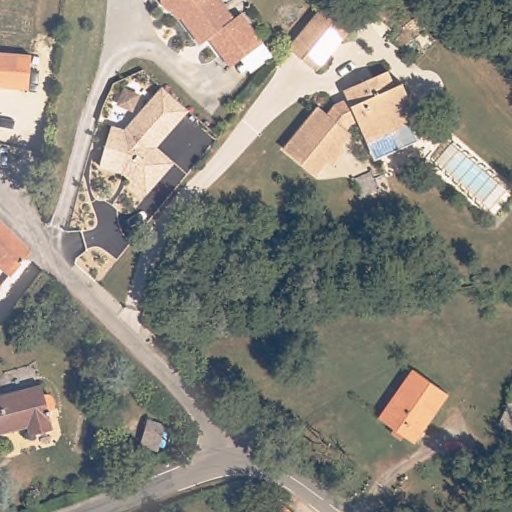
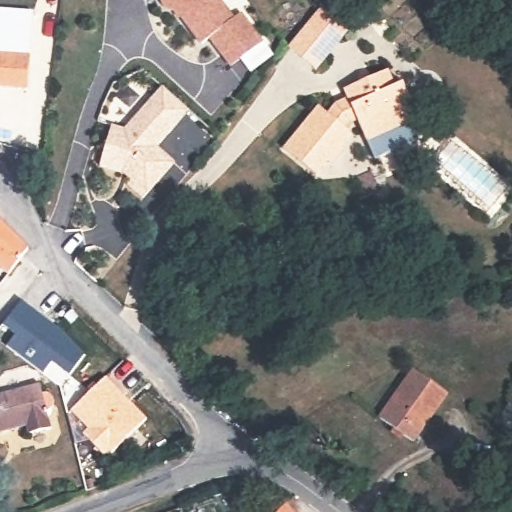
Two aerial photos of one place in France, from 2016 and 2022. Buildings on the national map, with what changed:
unchanged [(232,67),(222,55),(210,39),(203,45),(178,12),(173,11),(167,8),(163,2),(163,0),(221,0),(236,19),(242,14),(255,30),(264,42),(232,67)]
unchanged [(291,44),(323,6),(349,28),(317,66),(291,44)]
new [(30,58),(26,93),(0,90),(0,55),(30,58)]
unchanged [(369,137),(359,116),(353,119),(348,126),(352,130),(341,144),(345,147),(332,161),(329,158),(318,171),(286,145),(320,103),(329,111),(338,101),(350,96),(346,87),(390,68),(396,83),(404,80),(412,99),(405,102),(412,117),(369,137)]
unchanged [(100,165),(112,125),(125,129),(163,86),(183,105),(189,110),(156,146),(174,162),(142,198),(126,184),(130,180),(127,176),(121,171),(100,165)]
unchanged [(0,264),(0,214),(28,242),(26,246),(6,270),(0,264)]
new [(14,335),(1,325),(19,301),(57,327),(84,355),(69,375),(51,362),(43,375),(5,347),(14,335)]
unchanged [(379,417),(413,368),(447,392),(413,441),(379,417)]
unchanged [(44,376),(48,387),(53,386),(56,390),(59,395),(58,400),(51,403),(56,421),(32,428),(31,420),(0,429),(0,388),(44,376)]
new [(104,377),(145,420),(112,453),(108,450),(103,455),(82,434),(87,428),(69,410),(104,377)]
demolished [(512,402),(512,446),(496,438),(512,402)]
unchanged [(281,512),(288,504),(297,512),(281,512)]

